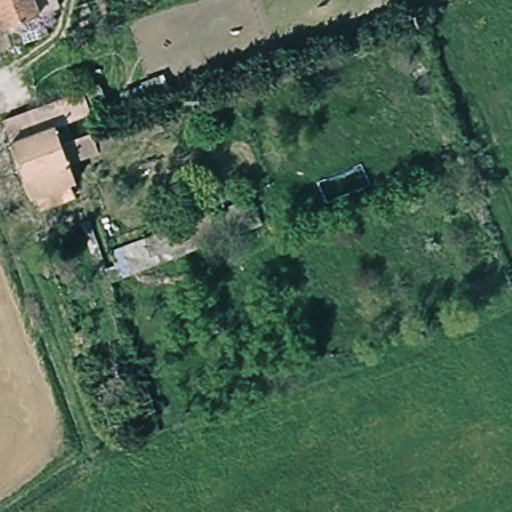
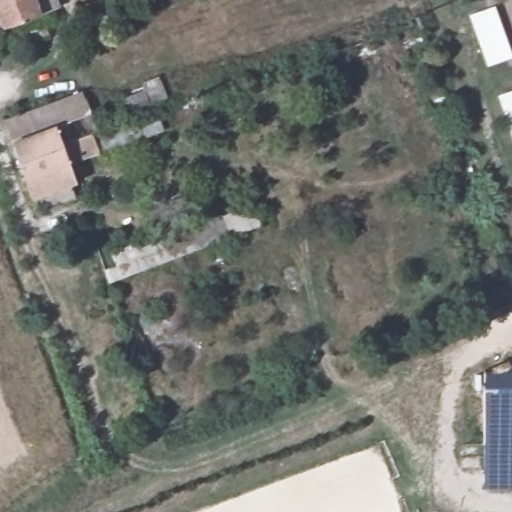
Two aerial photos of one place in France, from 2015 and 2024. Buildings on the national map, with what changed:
unchanged [(38,11),(5,23),(0,10),(0,0),(35,0),(38,11)]
new [(496,5),(512,52),(512,57),(488,66),(470,14),(496,5)]
new [(512,90),(512,137),(498,95),(512,90)]
unchanged [(71,128),(76,143),(61,150),(75,188),(31,203),(2,127),(81,100),(88,121),(71,128)]
unchanged [(145,138),(102,154),(94,139),(117,132),(141,125),(145,138)]
unchanged [(116,260),(131,256),(127,246),(258,197),(268,225),(123,277),(116,260)]
unchanged [(133,352),(90,228),(105,223),(116,260),(123,277),(147,347),(133,352)]
new [(483,487),(484,370),(512,370),(512,487),(483,487)]

